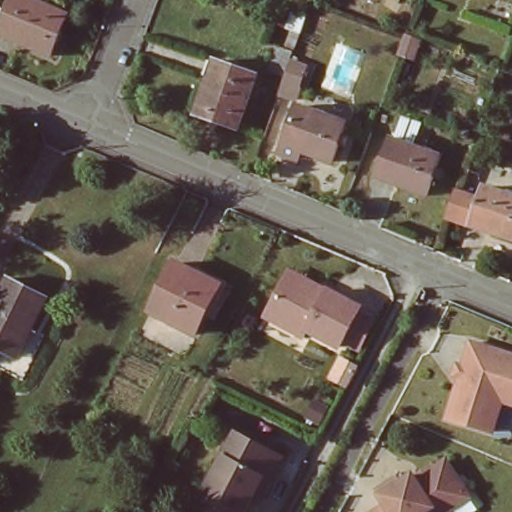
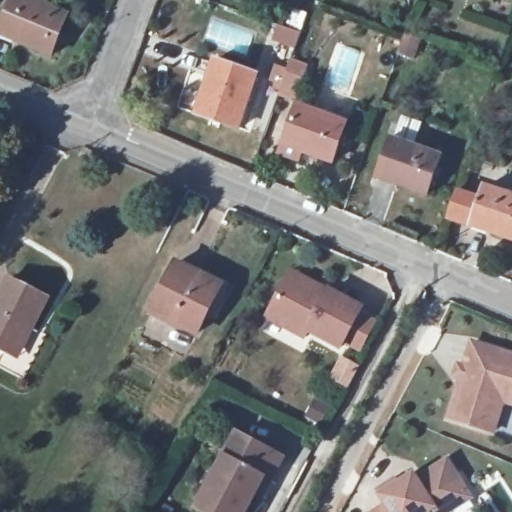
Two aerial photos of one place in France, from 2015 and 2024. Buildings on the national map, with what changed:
unchanged [(13,43),(0,38),(0,29),(12,0),(47,0),(43,11),(65,20),(48,61),(12,46),(13,43)]
unchanged [(300,34),(286,29),(293,9),(307,14),(300,34)]
unchanged [(213,78),(218,61),(258,75),(240,128),(198,114),(210,77),(213,78)]
unchanged [(279,100),(291,66),(306,71),(299,93),(301,93),(297,107),(279,100)]
unchanged [(286,147),(299,110),(347,127),(333,166),(301,155),(302,152),(286,147)]
unchanged [(423,199),(390,188),(391,186),(375,180),(388,143),(389,144),(398,121),(418,128),(410,151),(436,161),(423,199)]
unchanged [(486,186),(512,195),(512,238),(490,231),(491,229),(448,215),(456,191),(482,200),(486,186)]
unchanged [(153,312),(177,264),(221,286),(197,334),(153,312)]
unchanged [(342,348),(311,331),(306,339),(270,319),(289,281),(295,271),(333,291),(364,308),(342,348)]
unchanged [(10,279),(48,298),(32,330),(18,358),(12,355),(0,350),(0,298),(10,279)]
unchanged [(492,432),(448,418),(472,343),(512,356),(512,405),(502,401),(492,432)]
unchanged [(239,435),(277,457),(285,461),(264,498),(257,495),(247,512),(203,512),(197,509),(239,435)]
unchanged [(367,512),(369,509),(382,502),(380,493),(445,457),(472,498),(449,512),(367,512)]

